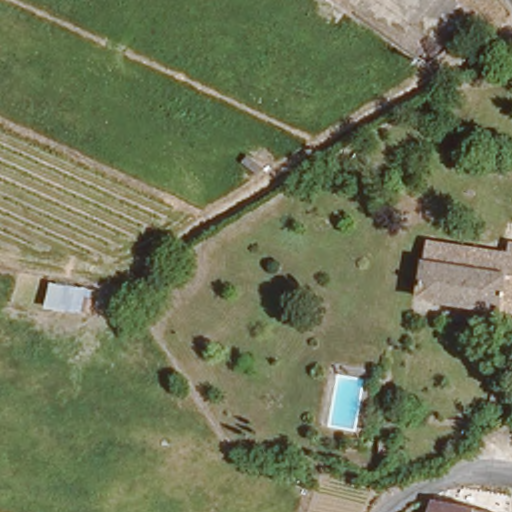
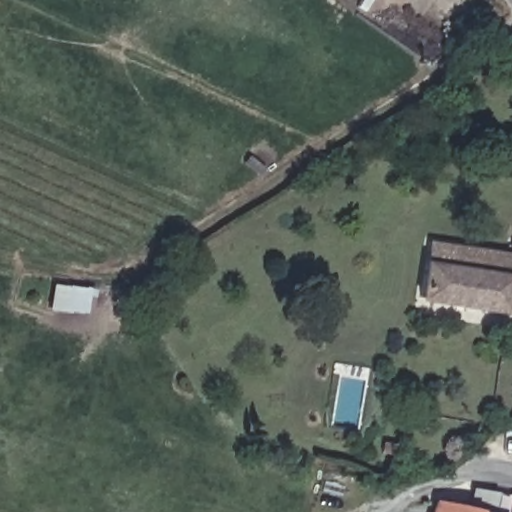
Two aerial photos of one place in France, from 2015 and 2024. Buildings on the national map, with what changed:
unchanged [(454,247),(455,241),(467,242),(466,248),(496,251),(498,244),(512,246),(512,313),(415,301),(424,243),(454,247)]
unchanged [(433,501),(473,507),(472,512),(429,512),(433,501)]

